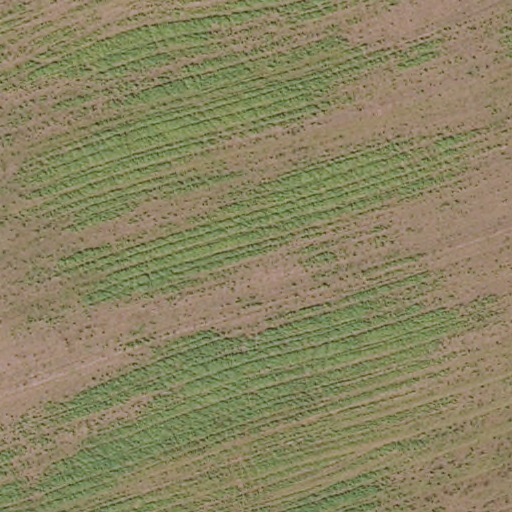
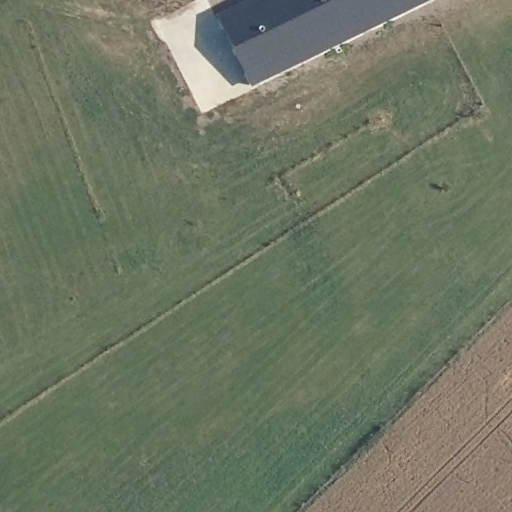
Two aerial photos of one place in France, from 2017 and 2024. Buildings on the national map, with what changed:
new [(218,17),(252,0),(434,0),(252,89),(218,17)]

